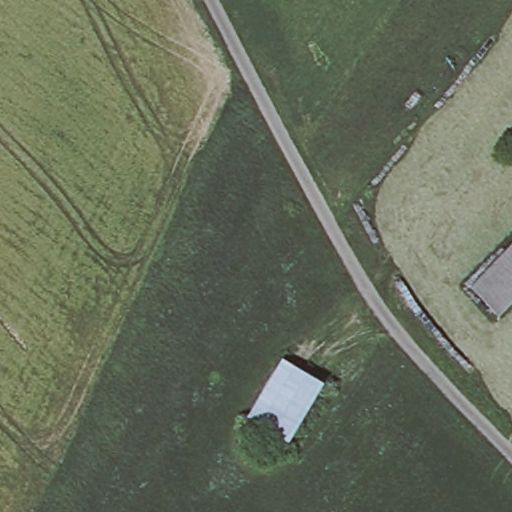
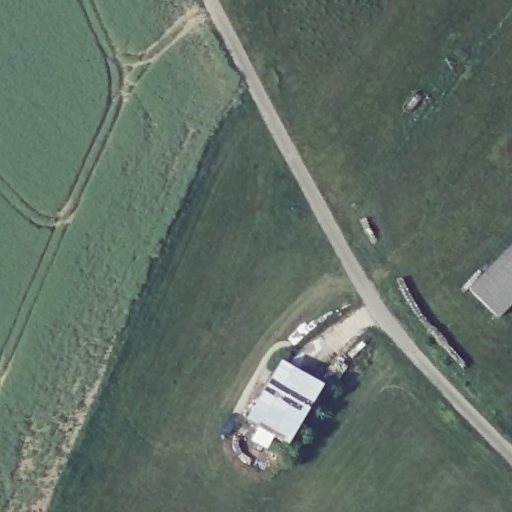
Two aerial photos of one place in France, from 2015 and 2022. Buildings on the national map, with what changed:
unchanged [(497,315),(468,287),(512,244),(512,300),(497,315)]
unchanged [(319,383),(284,443),(243,418),(279,359),(319,383)]

